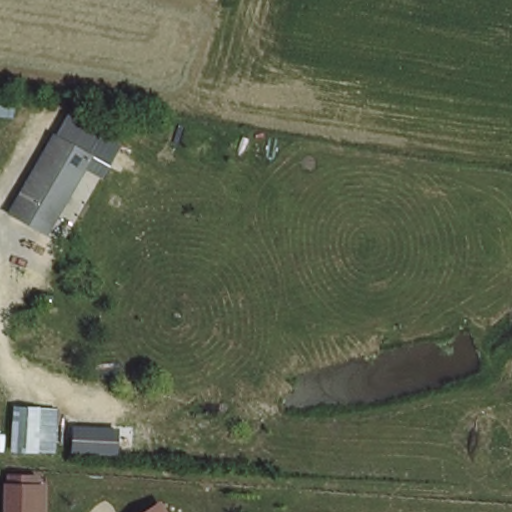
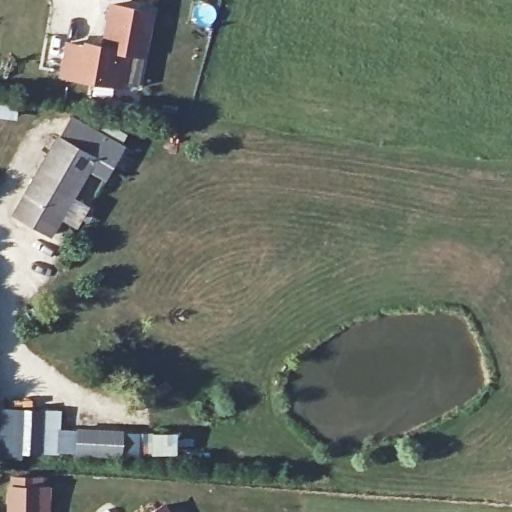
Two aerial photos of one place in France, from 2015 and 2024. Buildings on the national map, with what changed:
new [(63,41),(81,43),(82,40),(101,42),(108,3),(154,12),(146,57),(130,55),(124,88),(57,77),(63,41)]
unchanged [(69,116),(122,142),(105,179),(84,168),(92,151),(60,135),(69,116)]
unchanged [(60,135),(92,151),(84,168),(54,230),(15,212),(54,133),(60,135)]
unchanged [(43,405),(42,445),(18,445),(19,404),(43,405)]
unchanged [(44,512),(34,511),(7,510),(9,475),(35,477),(45,477),(44,512)]
unchanged [(165,502),(171,512),(150,512),(165,502)]

